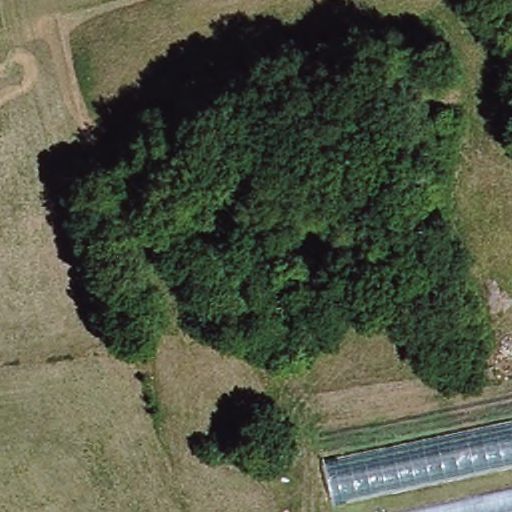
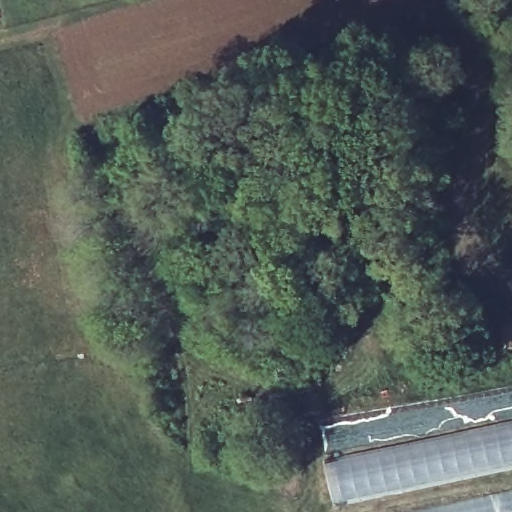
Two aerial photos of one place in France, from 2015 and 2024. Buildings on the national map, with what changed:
unchanged [(326,456),(512,420),(512,466),(335,503),(326,456)]
unchanged [(512,490),(512,512),(396,512),(512,490)]

